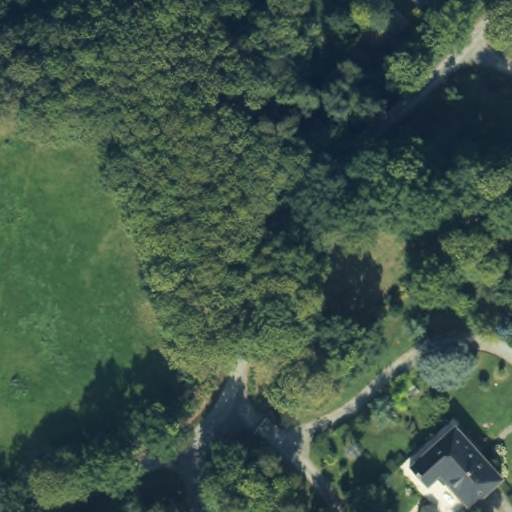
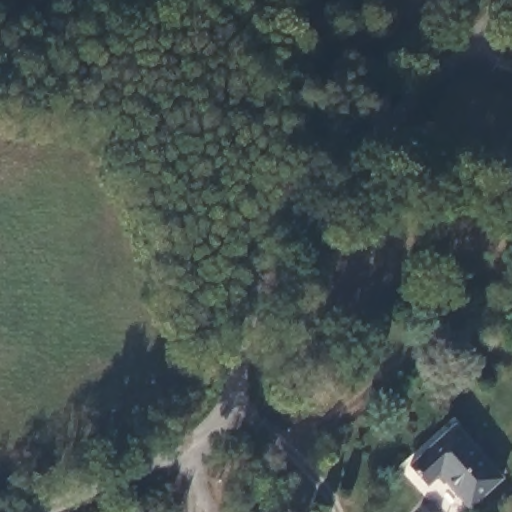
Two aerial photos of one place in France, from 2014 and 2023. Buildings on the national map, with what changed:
unchanged [(500,480),(469,506),(436,469),(423,480),(413,467),(455,429),(500,480)]
unchanged [(440,507),(439,512),(421,512),(423,503),(433,500),(440,507)]

